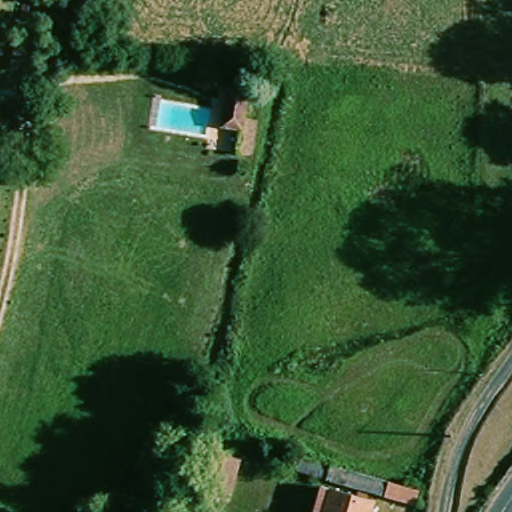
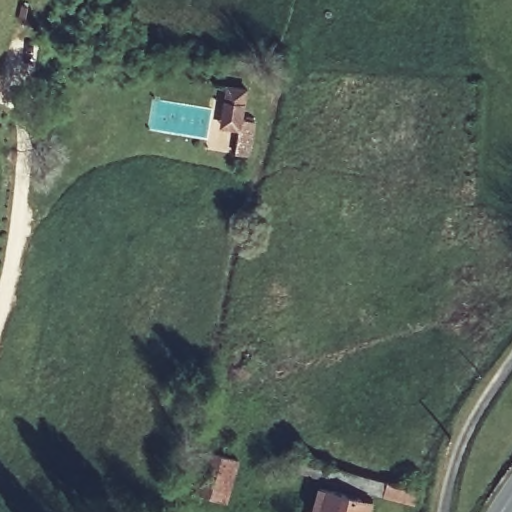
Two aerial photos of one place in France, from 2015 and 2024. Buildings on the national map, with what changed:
unchanged [(253,143),(239,139),(245,115),(229,111),(235,86),(239,72),(255,76),(252,90),(265,94),(253,143)]
unchanged [(237,464),(230,491),(193,481),(200,454),(237,464)]
unchanged [(425,493),(422,508),(324,483),(327,469),(425,493)]
unchanged [(320,512),(325,490),(366,501),(363,512),(320,512)]

